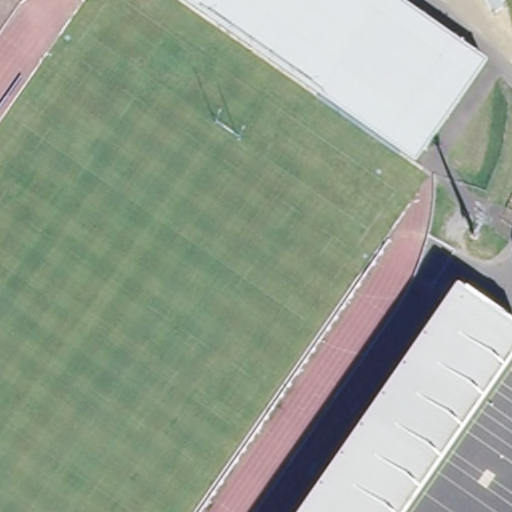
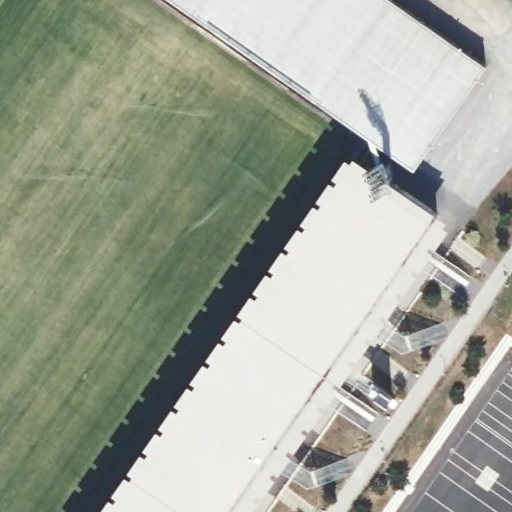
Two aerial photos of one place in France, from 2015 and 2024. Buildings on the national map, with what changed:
unchanged [(475,75),(423,152),(202,0),(367,0),(410,30),(475,75)]
new [(450,219),(246,512),(95,512),(349,149),(450,219)]
demolished [(405,512),(316,512),(458,309),(472,290),(512,317),(512,321),(506,331),(484,316),(479,323),(512,345),(512,362),(456,437),(405,512)]

